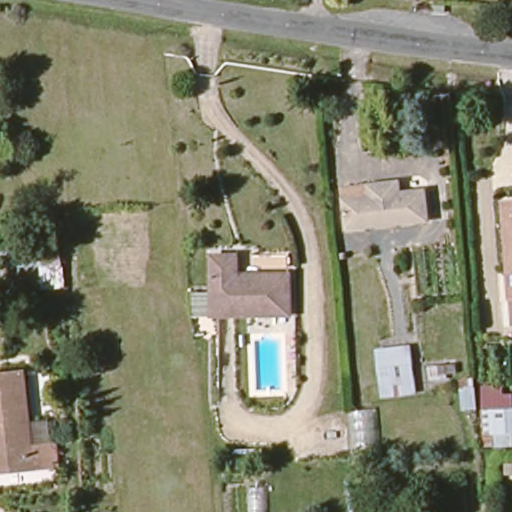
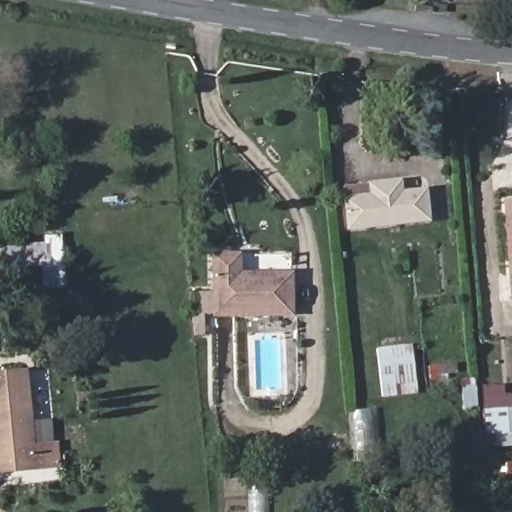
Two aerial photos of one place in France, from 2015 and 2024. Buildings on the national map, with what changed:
unchanged [(376,199),(374,186),(403,184),(404,195),(429,192),(432,222),(351,231),(348,202),(376,199)]
unchanged [(512,204),(512,299),(505,204),(512,204)]
unchanged [(213,316),(214,259),(239,259),(239,278),(290,278),(290,316),(217,316),(213,316)]
unchanged [(382,351),(415,347),(420,395),(403,396),(402,384),(386,385),(382,351)]
unchanged [(456,365),(458,375),(446,376),(447,380),(431,380),(431,367),(456,365)]
unchanged [(32,450),(59,448),(60,468),(0,474),(0,377),(24,375),(32,450)]
unchanged [(512,435),(486,437),(483,400),(512,399),(512,435)]

